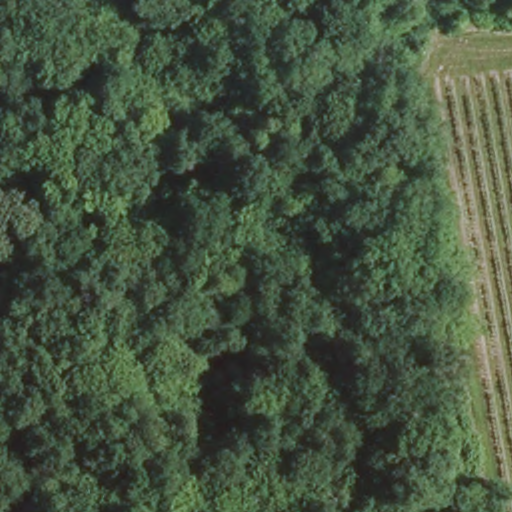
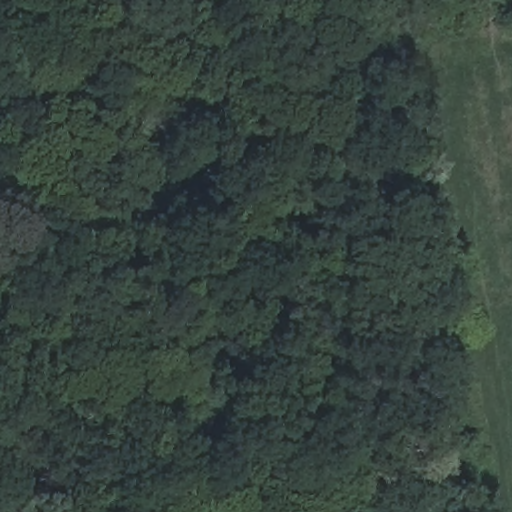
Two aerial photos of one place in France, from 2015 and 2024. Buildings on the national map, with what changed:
[]

